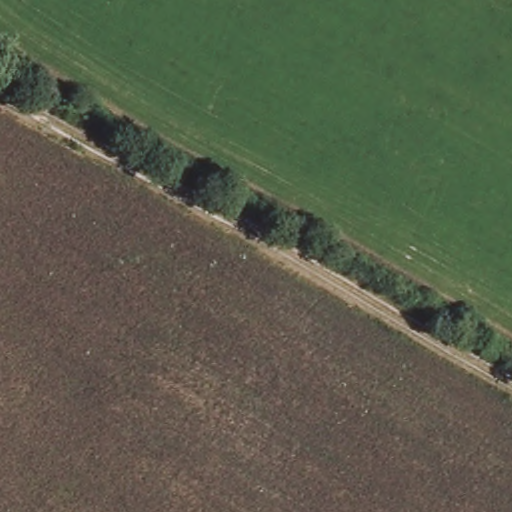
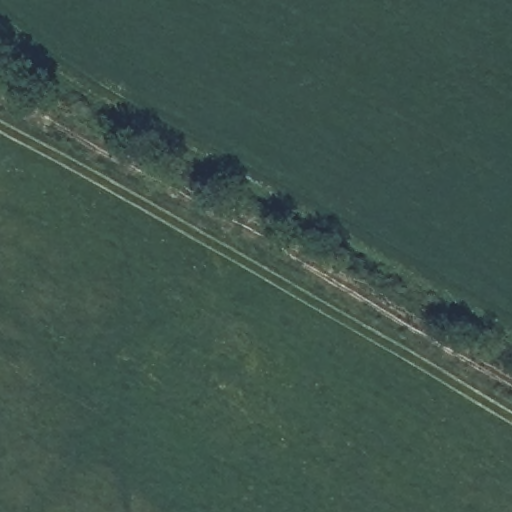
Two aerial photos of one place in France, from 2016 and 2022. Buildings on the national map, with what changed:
[]

